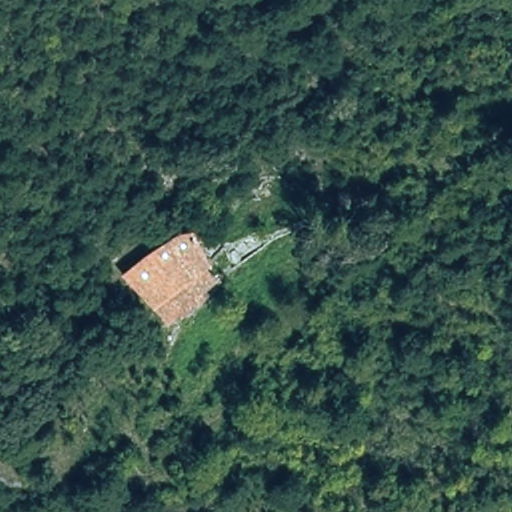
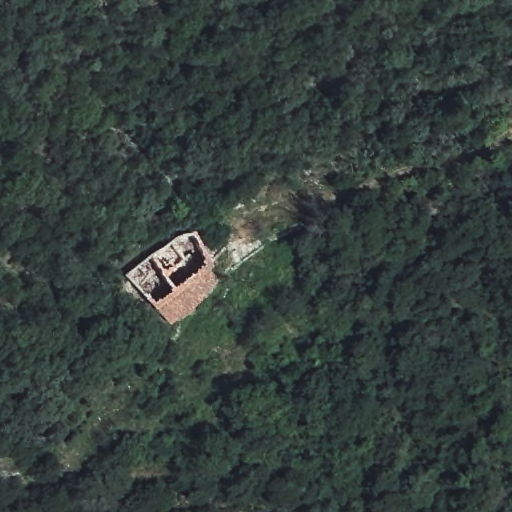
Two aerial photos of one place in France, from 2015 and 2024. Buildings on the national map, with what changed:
unchanged [(160,311),(125,273),(194,221),(218,264),(208,272),(222,284),(173,327),(160,311)]

